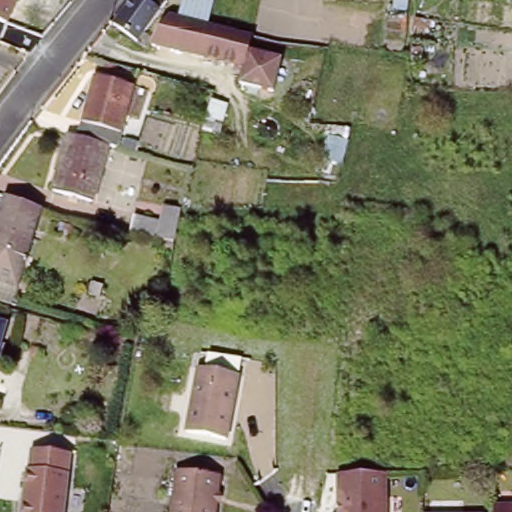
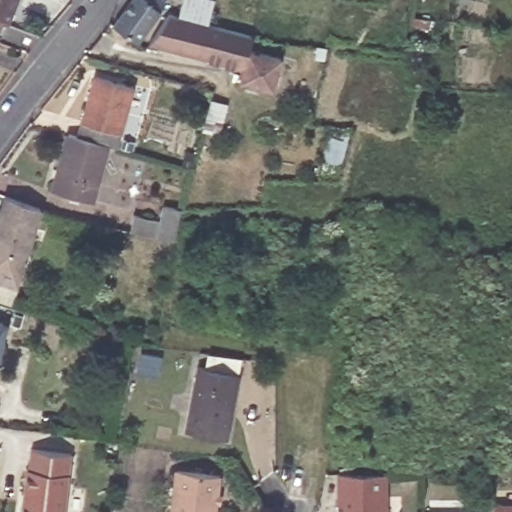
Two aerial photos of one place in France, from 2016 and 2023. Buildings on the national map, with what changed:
unchanged [(0,0),(18,0),(9,23),(0,20),(0,0)]
unchanged [(138,0),(150,0),(152,2),(154,0),(168,0),(173,3),(141,41),(118,24),(138,0)]
unchanged [(286,60),(279,92),(246,85),(250,67),(154,43),(175,15),(185,18),(187,12),(189,0),(219,0),(216,18),(214,25),(256,35),(253,52),(286,60)]
unchanged [(74,140),(91,81),(129,91),(113,151),(108,150),(74,140)]
unchanged [(340,164),(324,158),(331,133),(326,133),(328,124),(351,128),(340,164)]
unchanged [(93,205),(54,194),(70,139),(74,140),(108,150),(93,205)]
unchanged [(43,208),(27,258),(0,251),(0,222),(8,196),(43,208)]
unchanged [(136,214),(163,220),(166,204),(184,207),(183,209),(175,241),(160,237),(133,231),(136,214)]
unchanged [(19,287),(0,281),(0,251),(27,258),(19,287)]
unchanged [(0,346),(0,330),(4,331),(0,346)]
unchanged [(191,434),(203,368),(241,375),(229,441),(191,434)]
unchanged [(23,449),(69,454),(63,512),(16,512),(23,449)]
unchanged [(173,470),(218,475),(214,512),(169,512),(173,470)]
unchanged [(390,512),(339,512),(338,476),(389,472),(390,512)]
unchanged [(497,505),(512,505),(512,512),(497,512),(497,505)]

